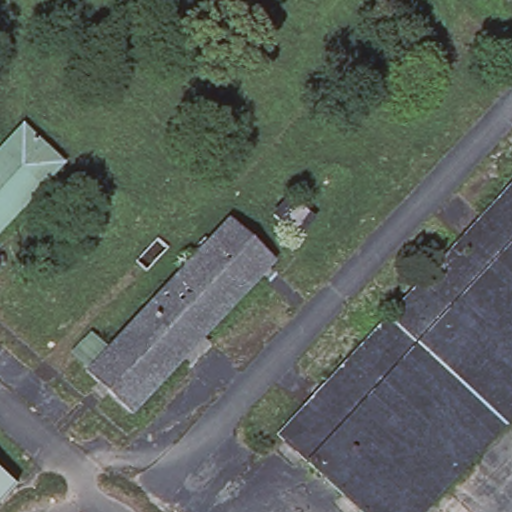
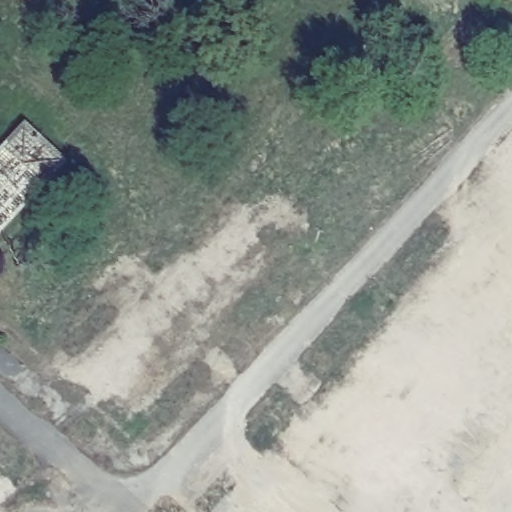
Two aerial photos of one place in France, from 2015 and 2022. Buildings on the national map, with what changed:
unchanged [(0,232),(0,140),(22,117),(65,160),(0,232)]
demolished [(504,144),(512,135),(512,152),(504,144)]
demolished [(423,512),(356,512),(301,460),(271,433),(512,174),(512,418),(423,512)]
demolished [(319,214),(294,239),(265,215),(289,188),(319,214)]
unchanged [(275,260),(130,413),(81,372),(62,351),(87,324),(104,339),(227,210),(275,260)]
unchanged [(0,501),(0,470),(15,485),(0,501)]

